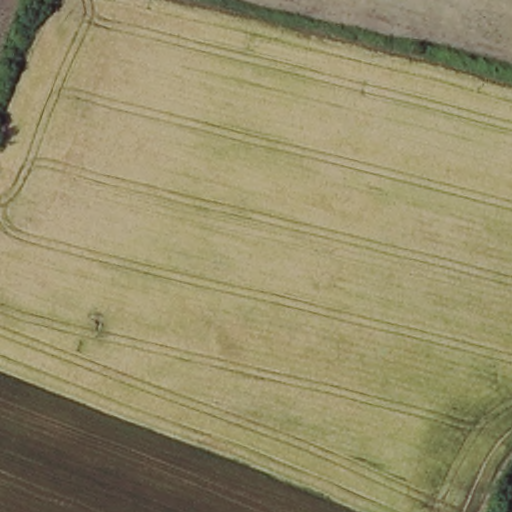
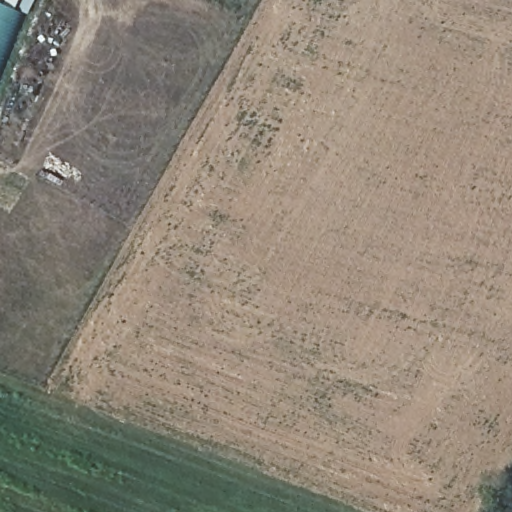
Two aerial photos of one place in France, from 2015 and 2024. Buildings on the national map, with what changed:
new [(7,0),(34,0),(26,15),(0,79),(0,5),(5,6),(7,0)]

